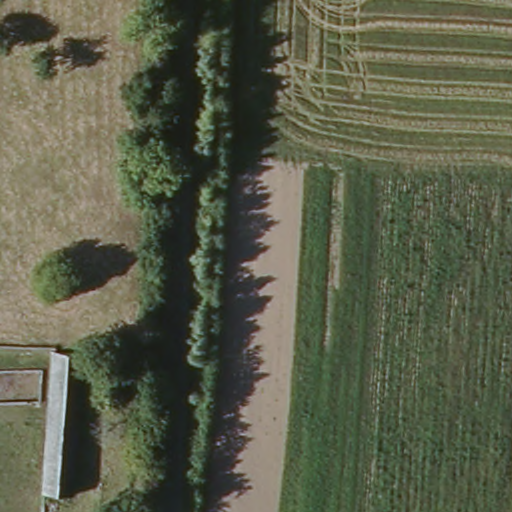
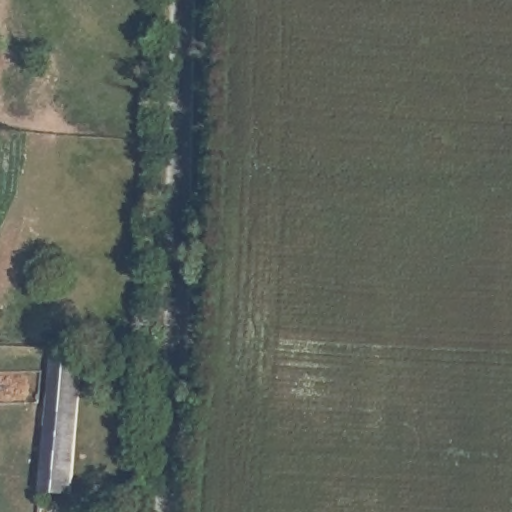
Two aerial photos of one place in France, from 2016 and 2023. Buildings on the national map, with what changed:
unchanged [(78,356),(70,495),(39,494),(47,354),(50,354),(78,356)]

